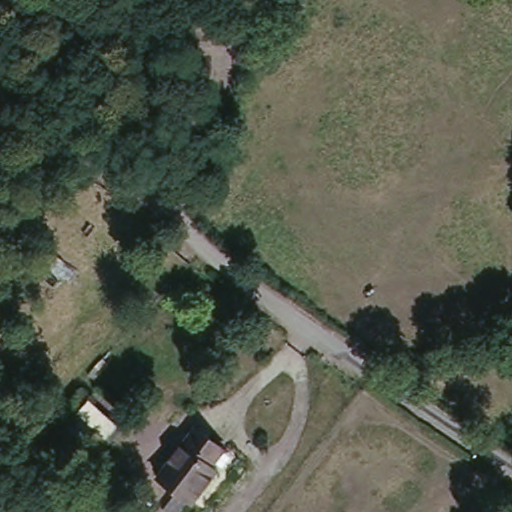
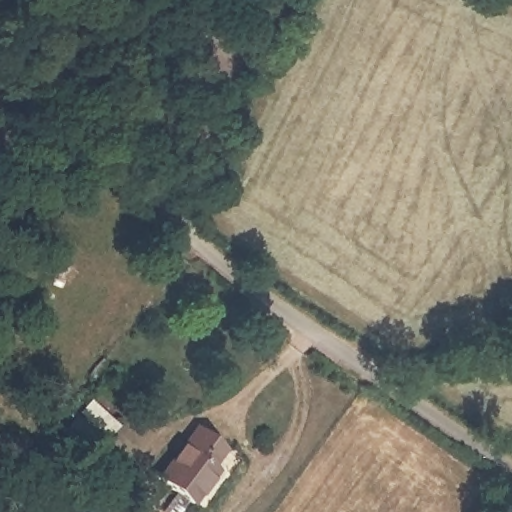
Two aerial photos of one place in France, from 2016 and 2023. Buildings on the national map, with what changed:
unchanged [(184,427),(215,450),(207,466),(214,470),(191,507),(152,479),(184,427)]

